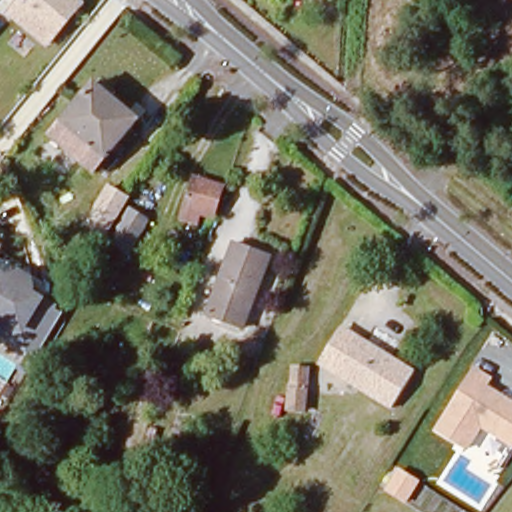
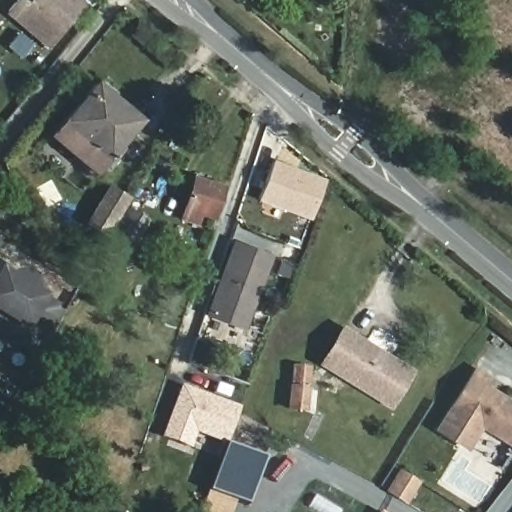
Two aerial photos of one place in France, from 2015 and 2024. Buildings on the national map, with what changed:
unchanged [(77,0),(82,5),(46,45),(7,11),(17,0),(77,0)]
unchanged [(310,0),(303,8),(294,0),(310,0)]
unchanged [(72,39),(66,33),(76,21),(82,26),(72,39)]
unchanged [(126,149),(115,161),(108,156),(103,163),(61,126),(104,73),(106,75),(110,71),(124,83),(121,86),(138,102),(132,110),(141,118),(127,133),(134,139),(126,149)]
new [(324,181),(310,220),(257,201),(272,161),(324,181)]
unchanged [(219,192),(207,224),(178,215),(189,183),(219,192)]
unchanged [(110,208),(86,246),(70,235),(92,197),(110,208)]
unchanged [(113,219),(131,231),(104,275),(87,264),(113,219)]
unchanged [(273,258),(246,329),(209,315),(236,243),(273,258)]
unchanged [(10,279),(13,275),(22,273),(30,277),(32,287),(29,291),(41,298),(28,319),(40,326),(27,347),(7,335),(15,322),(0,312),(0,272),(10,279)]
unchanged [(339,375),(318,363),(342,327),(363,339),(339,375)]
unchanged [(363,339),(416,373),(394,410),(339,375),(363,339)]
unchanged [(469,453),(433,431),(476,365),(496,377),(490,386),(512,400),(512,449),(483,431),(469,453)]
unchanged [(310,371),(308,411),(292,410),(294,370),(310,371)]
new [(226,444),(225,447),(196,434),(190,449),(161,437),(181,385),(240,407),(226,444)]
new [(231,512),(200,512),(226,444),(264,459),(246,505),(236,501),(231,512)]
unchanged [(409,508),(383,492),(399,468),(424,483),(409,508)]

